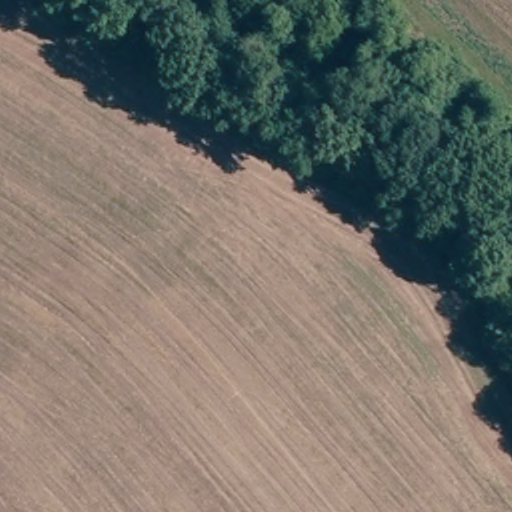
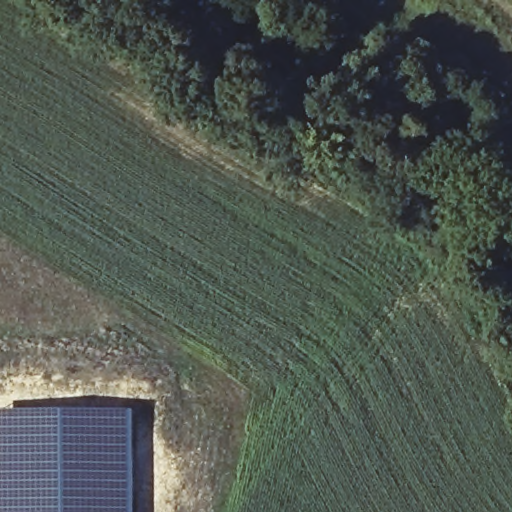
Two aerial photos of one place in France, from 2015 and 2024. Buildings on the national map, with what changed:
new [(135,512),(0,512),(0,410),(135,411),(135,512)]

